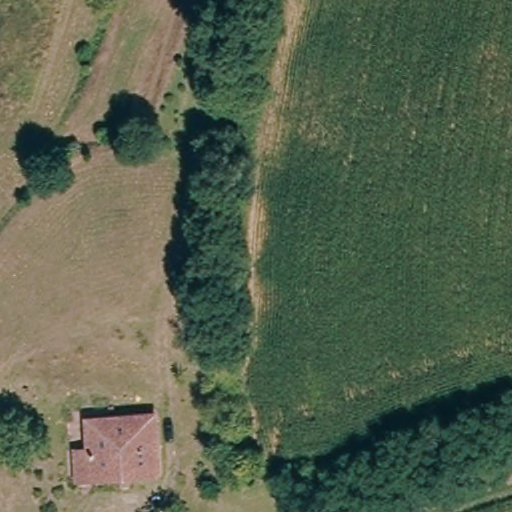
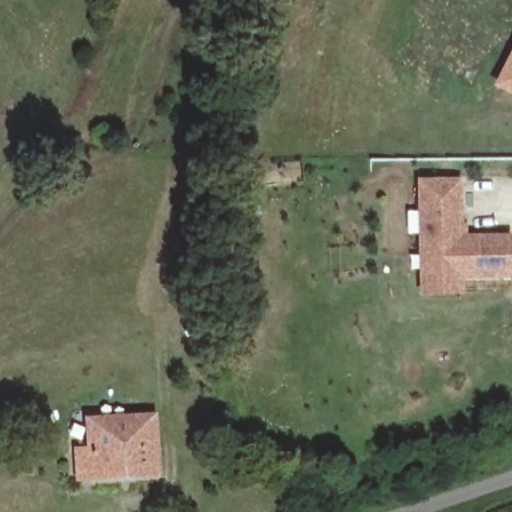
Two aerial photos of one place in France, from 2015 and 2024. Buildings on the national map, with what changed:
new [(512,46),(512,96),(492,85),(512,46)]
new [(464,279),(464,294),(420,295),(418,179),(463,177),(464,234),(512,233),(512,278),(464,279)]
unchanged [(69,453),(96,451),(94,425),(159,420),(164,476),(99,479),(81,481),(71,481),(69,453)]

